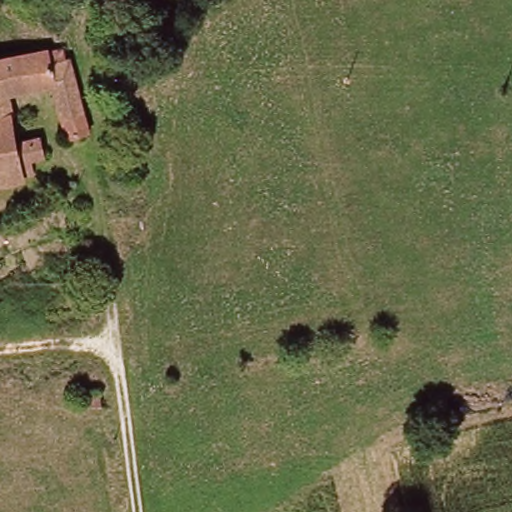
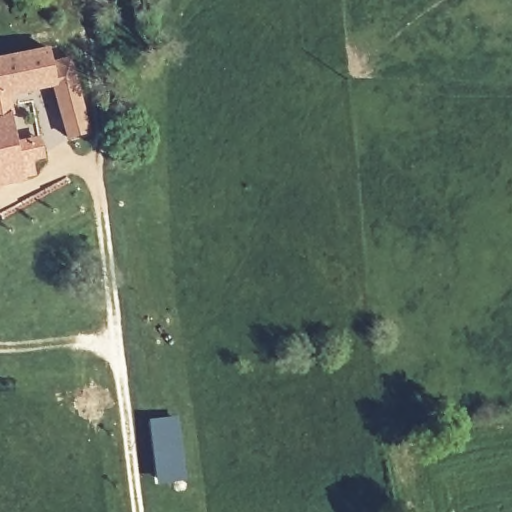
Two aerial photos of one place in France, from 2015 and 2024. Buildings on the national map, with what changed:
unchanged [(70,44),(72,56),(92,133),(67,139),(52,88),(10,93),(14,113),(18,140),(43,133),(47,160),(35,162),(35,177),(26,180),(0,186),(0,56),(50,47),(70,44)]
new [(187,479),(158,483),(149,420),(178,417),(187,479)]

